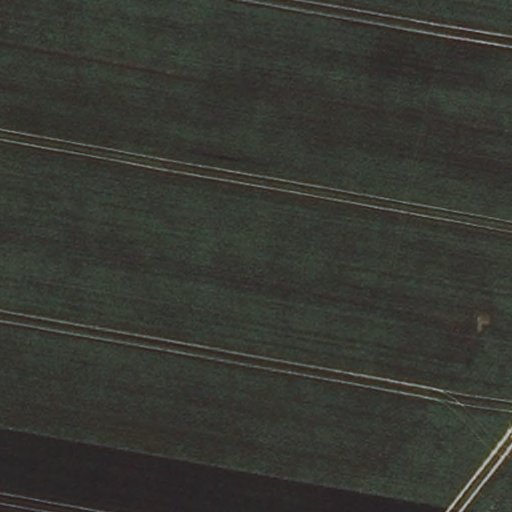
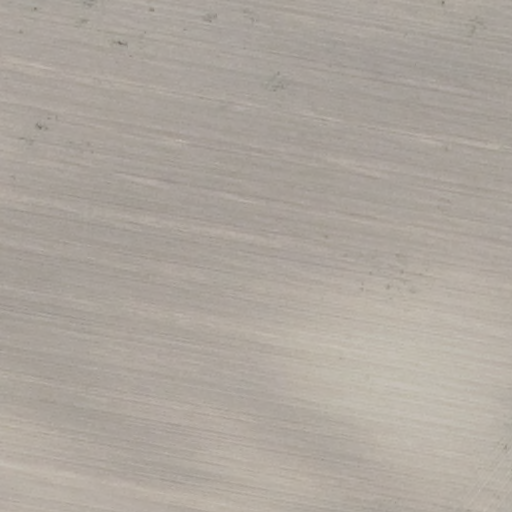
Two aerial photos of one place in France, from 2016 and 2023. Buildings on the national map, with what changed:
[]

